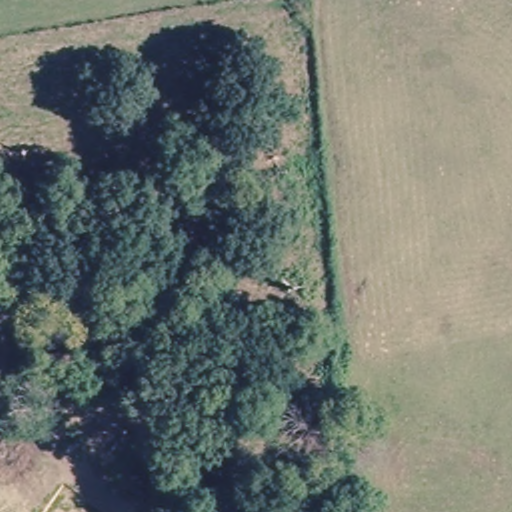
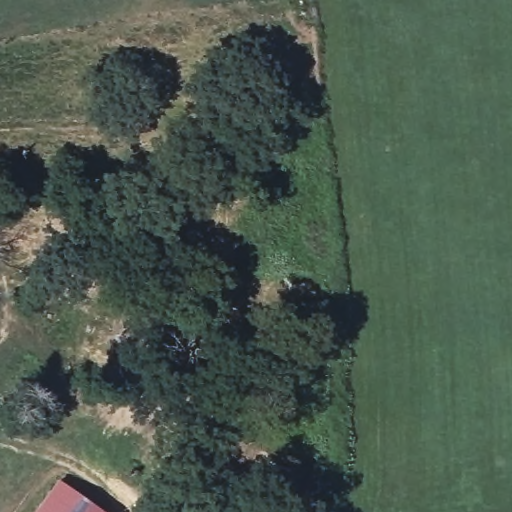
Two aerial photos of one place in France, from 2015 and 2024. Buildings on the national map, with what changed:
new [(104,512),(33,512),(57,478),(104,512)]

